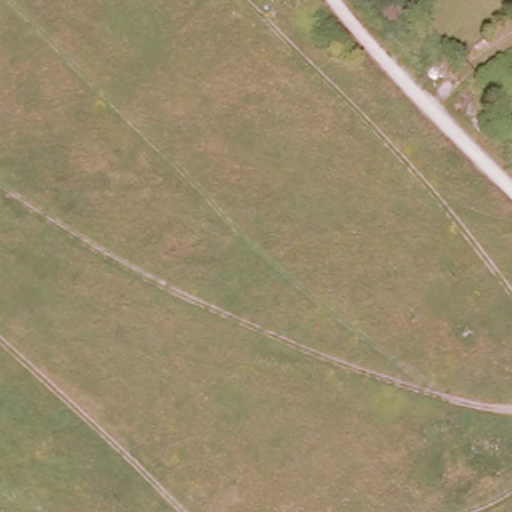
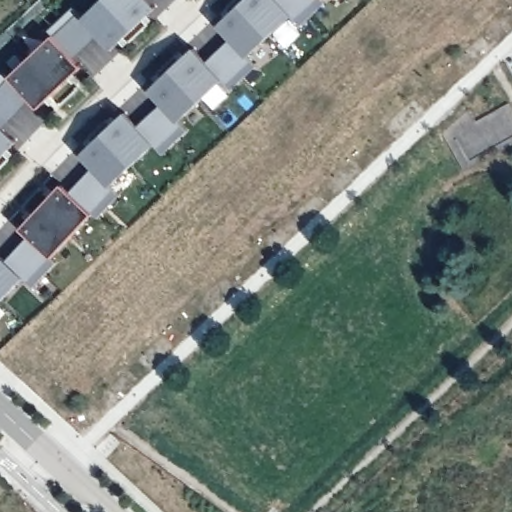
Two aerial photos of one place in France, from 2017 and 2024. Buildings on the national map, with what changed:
new [(84,15),(100,0),(156,0),(159,3),(114,46),(84,15)]
new [(219,22),(242,0),(271,32),(249,53),(231,35),(219,22)]
new [(242,0),(284,0),(294,10),(271,32),(242,0)]
new [(293,11),(294,10),(284,0),(324,0),(315,9),(302,21),(296,14),(293,11)]
new [(32,52),(55,31),(51,28),(63,16),(75,4),(82,11),(85,14),(84,15),(101,33),(90,44),(77,55),(57,34),(85,62),(62,84),(32,52)]
new [(224,10),(229,5),(232,9),(228,14),(224,10)]
new [(154,16),(149,20),(145,17),(150,12),(154,16)]
new [(130,37),(125,42),(122,38),(127,34),(130,37)]
new [(227,79),(225,76),(225,75),(209,56),(220,46),(231,35),(249,53),(250,52),(252,56),(259,62),(246,74),(234,85),(227,79)]
new [(202,96),(174,65),(197,43),(225,75),(202,96)]
new [(179,52),(184,48),(187,52),(182,57),(179,52)]
new [(10,73),(32,52),(62,84),(40,104),(12,75),(32,96),(19,110),(5,123),(0,118),(0,75),(6,68),(10,73)]
new [(202,96),(180,118),(150,86),(174,65),(202,96)]
new [(155,74),(160,69),(165,74),(160,78),(155,74)]
new [(76,71),(80,75),(75,79),(71,75),(76,71)]
new [(53,92),(57,97),(52,101),(49,97),(53,92)]
new [(159,143),(156,140),(157,139),(140,120),(151,110),(162,99),(180,118),(181,117),(183,120),(184,119),(190,126),(177,138),(165,149),(159,143)]
new [(134,160),(105,129),(127,107),(157,139),(134,160)]
new [(110,117),(115,112),(119,116),(114,121),(110,117)]
new [(0,157),(0,118),(19,136),(0,157)]
new [(134,160),(111,182),(82,150),(105,129),(134,160)]
new [(87,138),(92,134),(95,138),(90,142),(87,138)]
new [(11,145),(15,149),(10,153),(7,150),(11,145)]
new [(64,179),(72,186),(83,174),(94,163),(111,182),(112,181),(115,183),(121,190),(111,201),(100,213),(95,209),(75,231),(44,202),(64,179)]
new [(47,188),(52,183),(56,187),(52,192),(47,188)]
new [(27,272),(8,254),(19,243),(30,231),(22,224),(44,202),(75,231),(54,253),(58,257),(47,269),(35,282),(29,276),(25,273),(27,272)]
new [(26,212),(30,207),(35,210),(30,215),(26,212)]
new [(0,247),(27,272),(5,294),(0,290),(0,247)]
new [(0,300),(0,290),(5,294),(0,300)]

